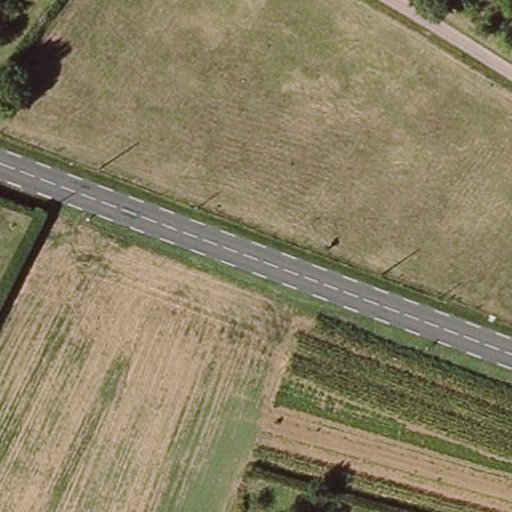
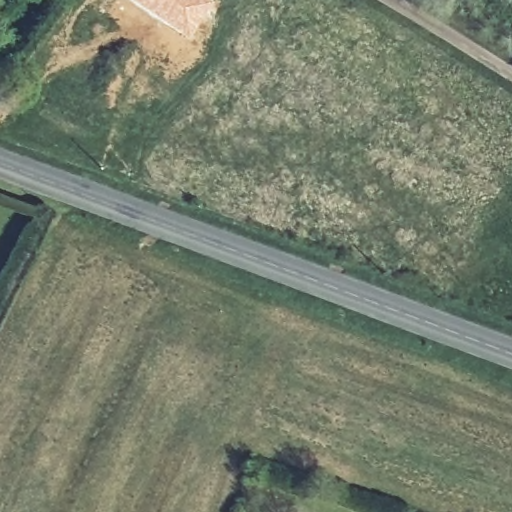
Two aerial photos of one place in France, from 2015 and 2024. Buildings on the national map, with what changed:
new [(130,0),(214,0),(187,40),(130,0)]

